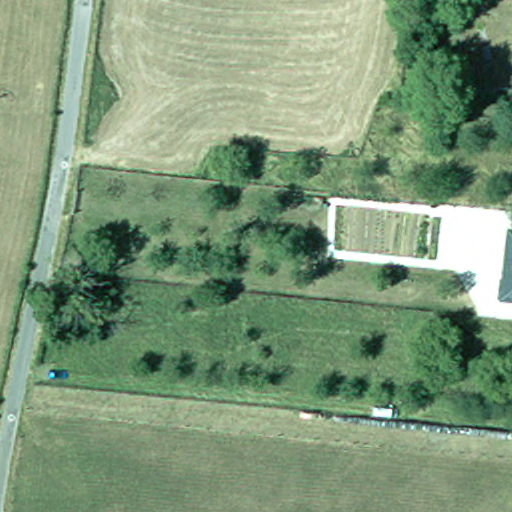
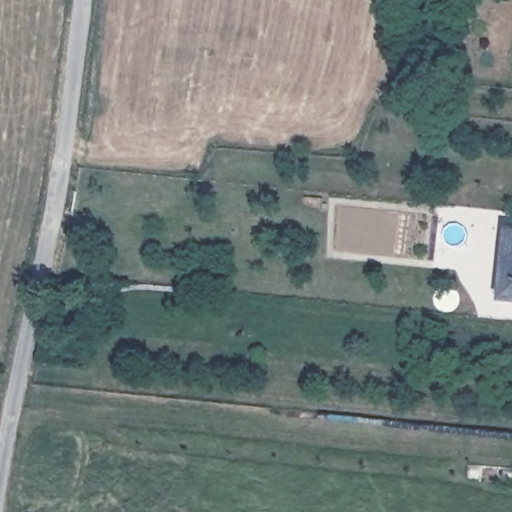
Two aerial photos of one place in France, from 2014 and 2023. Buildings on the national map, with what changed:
unchanged [(501,269),(505,222),(512,223),(512,291),(499,290),(501,269)]

